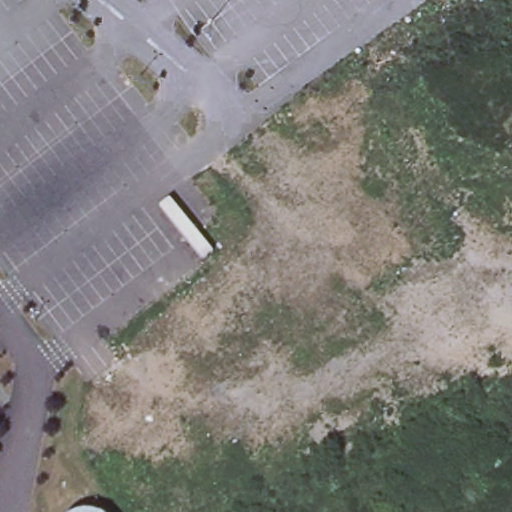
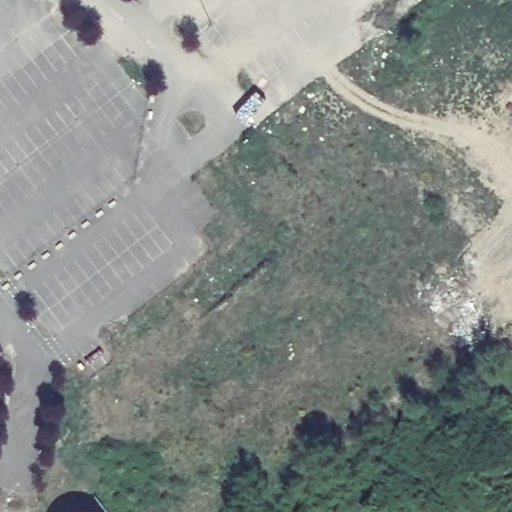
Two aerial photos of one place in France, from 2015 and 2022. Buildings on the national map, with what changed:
[]

